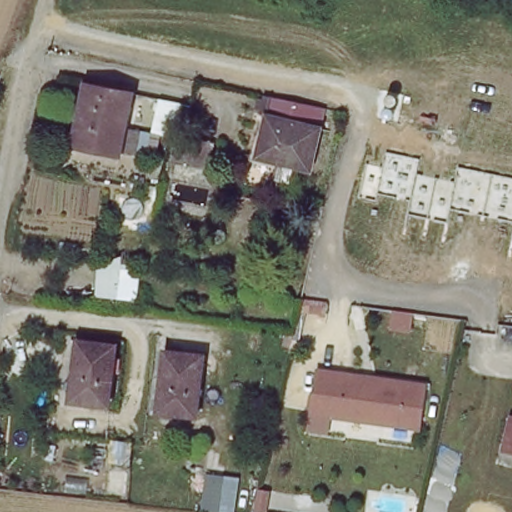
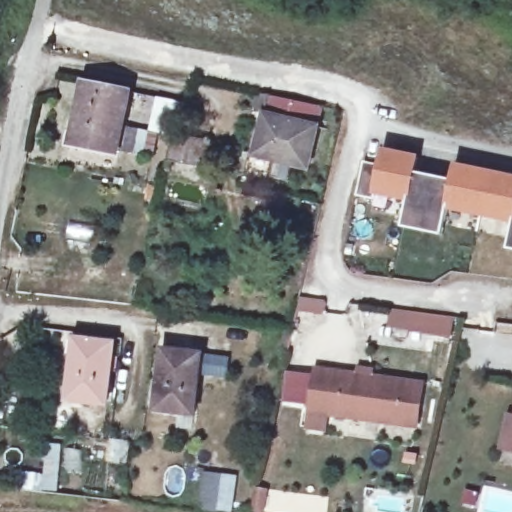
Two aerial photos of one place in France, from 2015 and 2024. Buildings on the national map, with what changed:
unchanged [(150,157),(130,154),(65,142),(78,81),(126,91),(120,126),(136,129),(155,133),(150,157)]
unchanged [(176,101),(170,126),(151,122),(156,97),(176,101)]
unchanged [(282,101),(324,110),(309,172),(283,167),(279,181),(241,173),(246,158),(256,161),(268,117),(260,115),(264,97),(282,101)]
unchanged [(207,140),(201,167),(163,159),(168,132),(207,140)]
new [(446,210),(442,235),(404,226),(409,202),(374,194),(374,199),(358,195),(364,162),(381,165),(386,148),(422,156),(417,172),(453,181),(456,163),(512,175),(512,223),(446,210)]
new [(508,250),(512,231),(512,250),(508,250)]
new [(457,319),(454,339),(387,328),(391,308),(457,319)]
unchanged [(105,407),(68,402),(76,343),(114,348),(105,407)]
unchanged [(193,413),(155,409),(163,348),(201,352),(193,413)]
unchanged [(316,368),(423,383),(417,425),(311,411),(316,368)]
unchanged [(503,446),(509,421),(512,421),(512,448),(503,446)]
unchanged [(219,457),(215,500),(223,501),(222,512),(192,512),(201,454),(219,457)]

